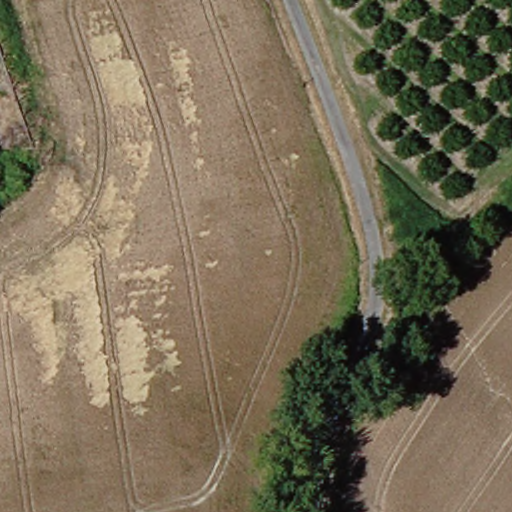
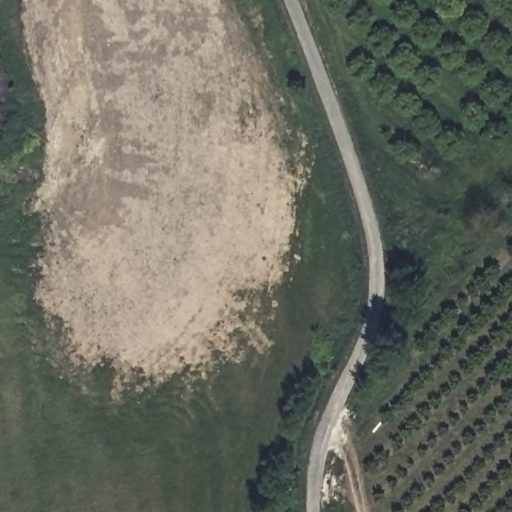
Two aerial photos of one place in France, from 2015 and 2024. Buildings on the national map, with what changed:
[]

